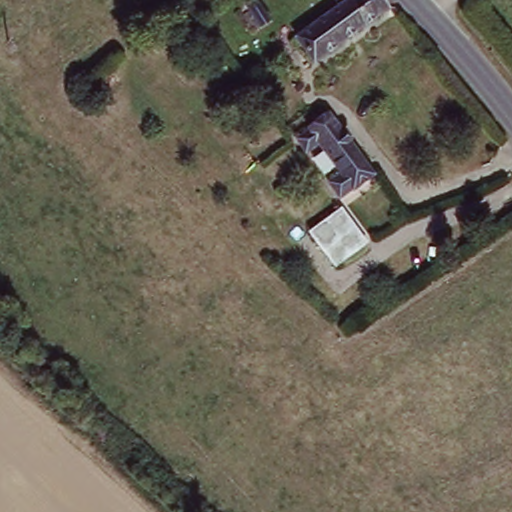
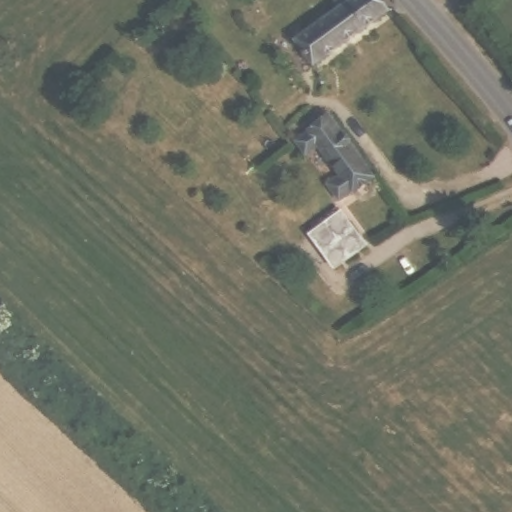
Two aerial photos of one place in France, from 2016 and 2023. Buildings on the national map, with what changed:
unchanged [(301,38),(345,6),(339,0),(387,0),(394,9),(318,63),(301,38)]
unchanged [(302,140),(333,115),(368,161),(367,162),(377,174),(345,198),(334,183),(347,173),(325,144),(311,153),(302,140)]
unchanged [(408,217),(376,239),(351,206),(382,183),(408,217)]
unchanged [(340,267),(315,232),(346,209),(372,243),(340,267)]

